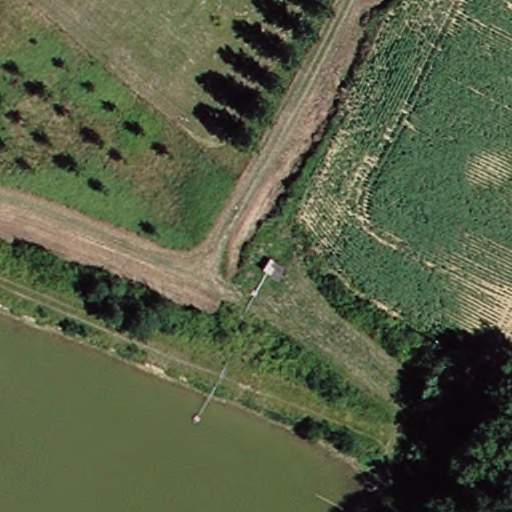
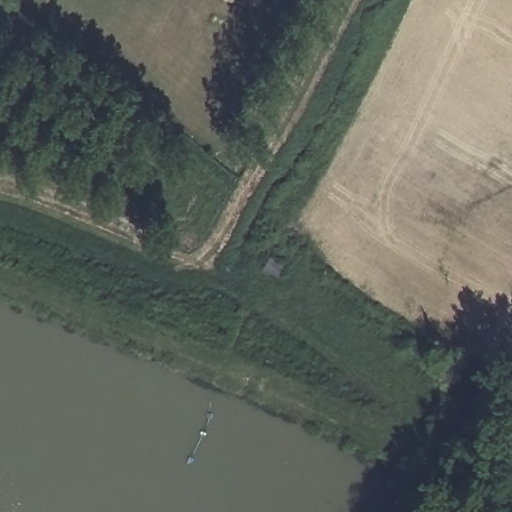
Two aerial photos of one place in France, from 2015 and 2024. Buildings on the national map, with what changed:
unchanged [(283,267),(276,277),(263,267),(269,258),(283,267)]

